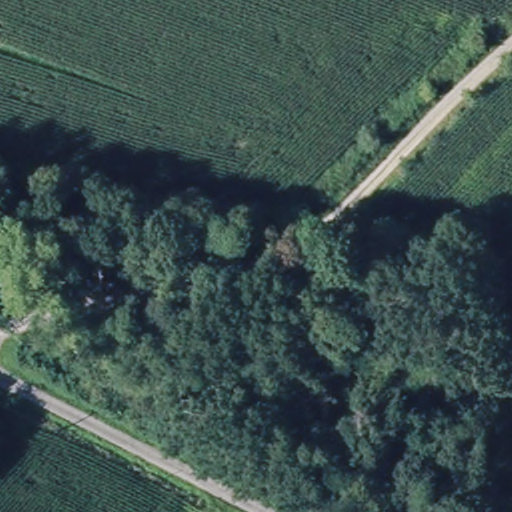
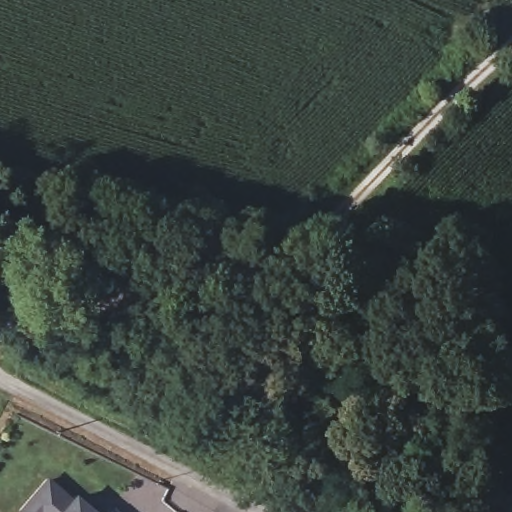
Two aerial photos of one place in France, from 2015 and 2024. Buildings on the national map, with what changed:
new [(74,497),(84,506),(91,512),(92,512),(19,512),(46,480),(71,502),(74,497)]
new [(115,512),(109,512),(111,509),(115,512)]

